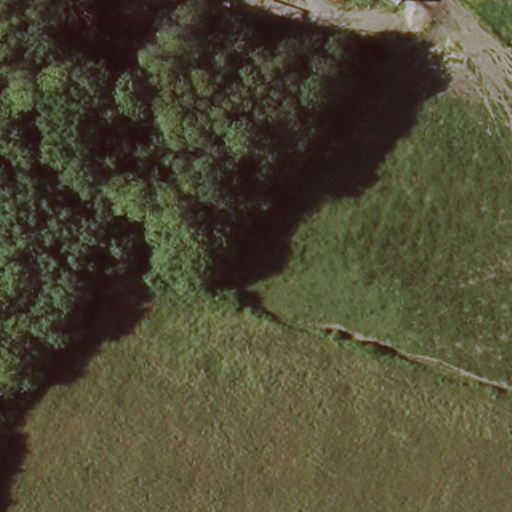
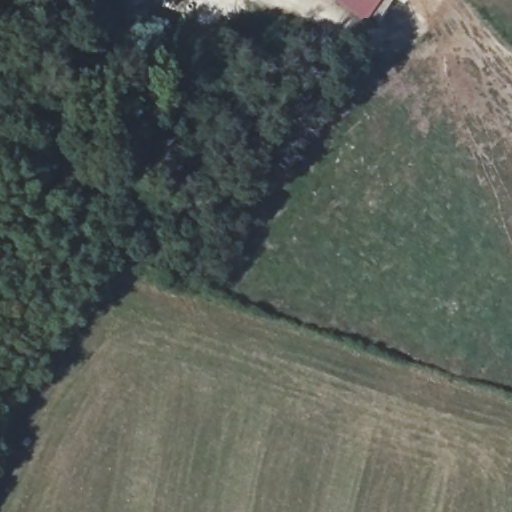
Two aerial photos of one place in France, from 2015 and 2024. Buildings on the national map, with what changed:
new [(339,0),(381,0),(367,19),(339,0)]
unchanged [(399,0),(406,0),(403,4),(399,0)]

